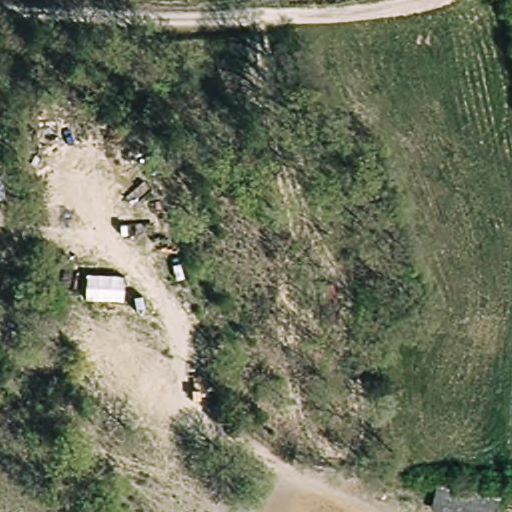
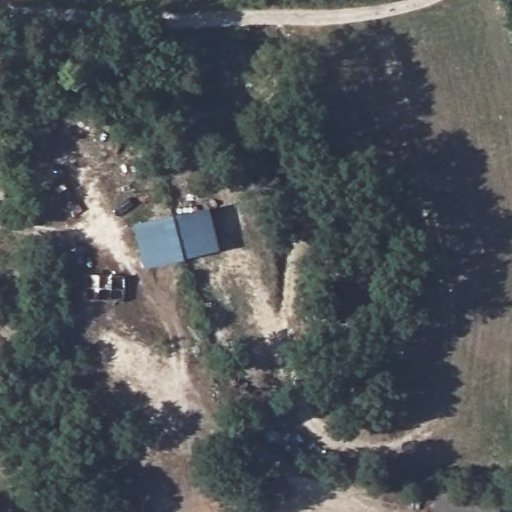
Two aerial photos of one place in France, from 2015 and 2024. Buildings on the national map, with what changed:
unchanged [(5,199),(0,199),(0,156),(2,156),(5,199)]
new [(144,265),(134,221),(209,205),(218,247),(144,265)]
unchanged [(85,300),(85,273),(124,275),(124,302),(85,300)]
unchanged [(437,488),(504,501),(503,512),(433,512),(437,488)]

